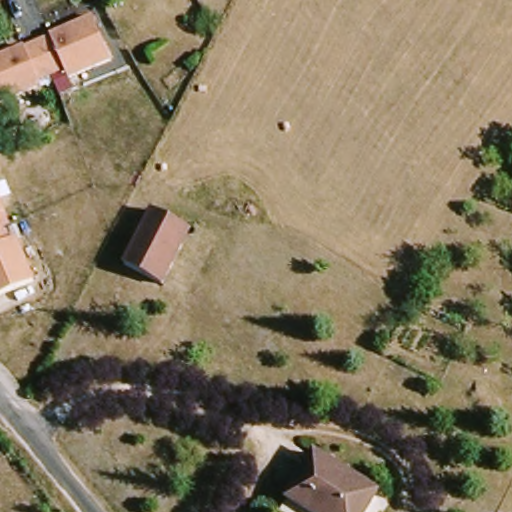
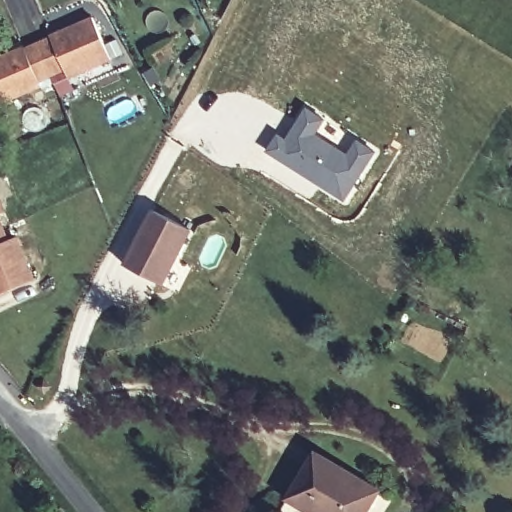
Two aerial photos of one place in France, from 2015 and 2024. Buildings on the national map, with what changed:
unchanged [(0,60),(101,19),(118,60),(74,78),(70,70),(40,82),(44,90),(0,108),(0,60)]
new [(277,131),(285,136),(305,105),(326,120),(317,132),(345,152),(356,138),(376,153),(342,203),(264,150),(277,131)]
unchanged [(2,213),(14,241),(21,238),(38,279),(0,295),(0,190),(9,211),(2,213)]
unchanged [(166,287),(133,270),(160,218),(192,235),(166,287)]
unchanged [(309,512),(291,501),(320,450),(388,489),(376,512),(309,512)]

